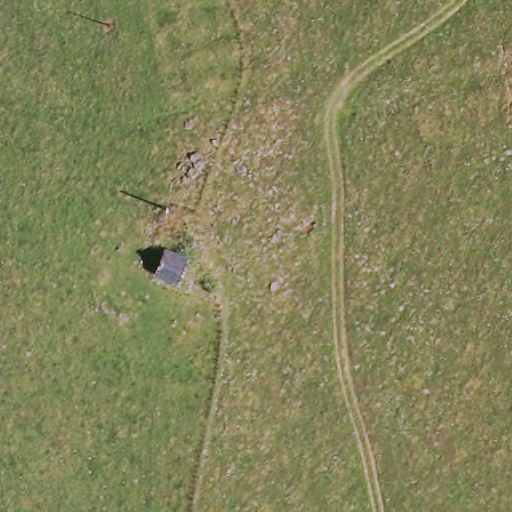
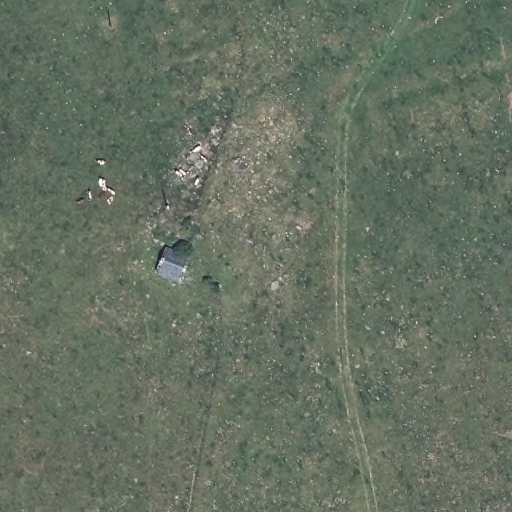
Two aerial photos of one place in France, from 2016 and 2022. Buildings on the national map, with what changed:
unchanged [(173,249),(198,262),(185,288),(161,279),(173,249)]

